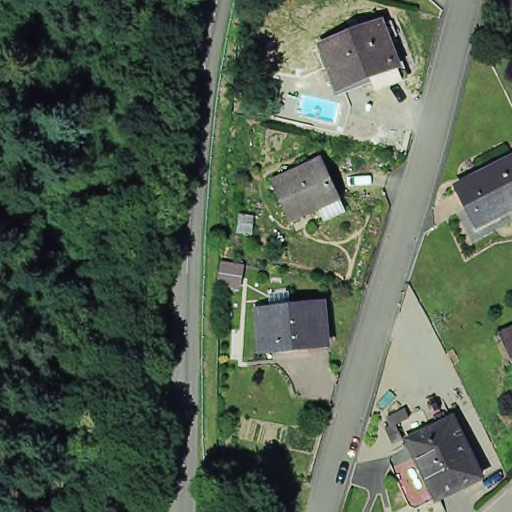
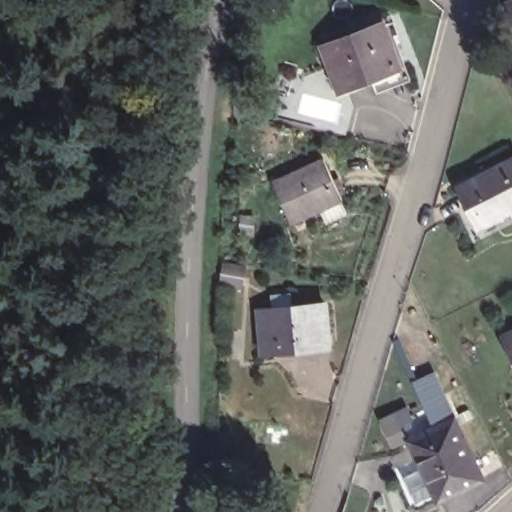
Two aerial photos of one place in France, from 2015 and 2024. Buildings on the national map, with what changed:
unchanged [(389,21),(405,64),(345,87),(330,45),(389,21)]
unchanged [(325,156),(342,195),(293,219),(275,180),(325,156)]
unchanged [(512,208),(486,221),(466,185),(512,161),(512,208)]
unchanged [(322,296),(326,337),(261,344),(256,301),(322,296)]
unchanged [(512,339),(507,328),(512,326),(512,339)]
unchanged [(488,474),(437,494),(406,435),(430,426),(418,395),(441,387),(455,408),(488,474)]

